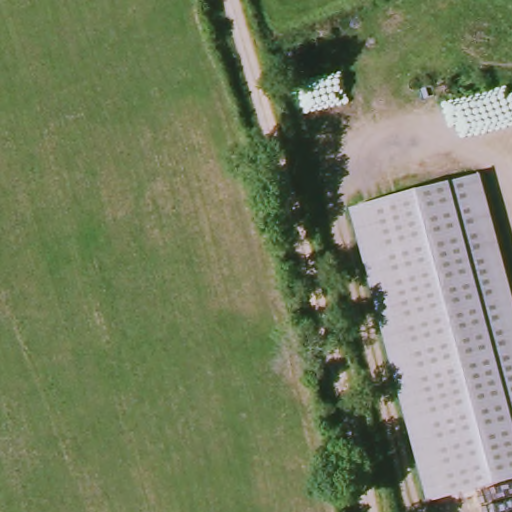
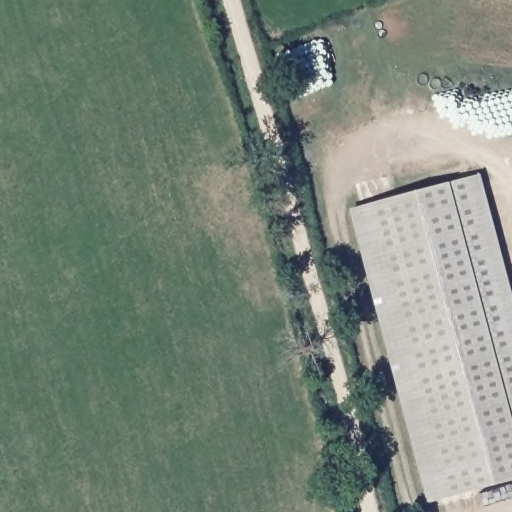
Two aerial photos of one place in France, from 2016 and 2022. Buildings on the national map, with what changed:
unchanged [(481,175),(512,295),(512,481),(427,503),(349,208),(481,175)]

